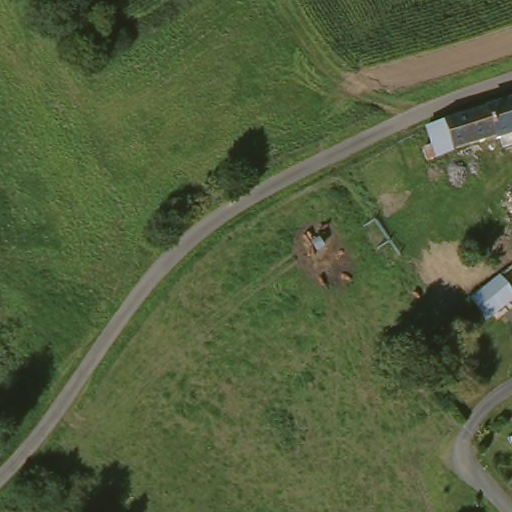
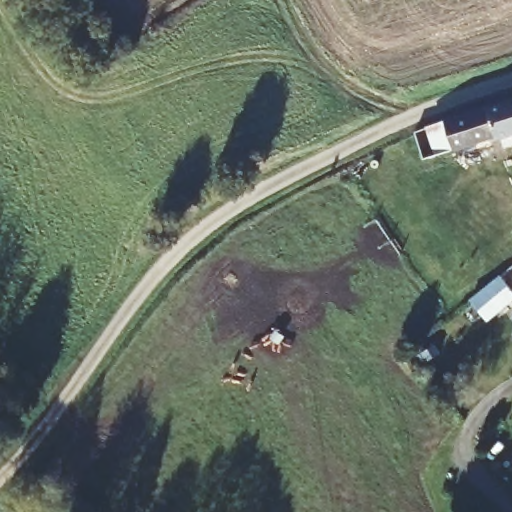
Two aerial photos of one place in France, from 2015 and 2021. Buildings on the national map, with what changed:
unchanged [(483,108),(512,98),(512,132),(500,136),(500,133),(460,148),(457,143),(440,150),(431,126),(448,120),(483,108)]
unchanged [(512,303),(495,317),(477,295),(508,270),(512,275),(512,303)]

